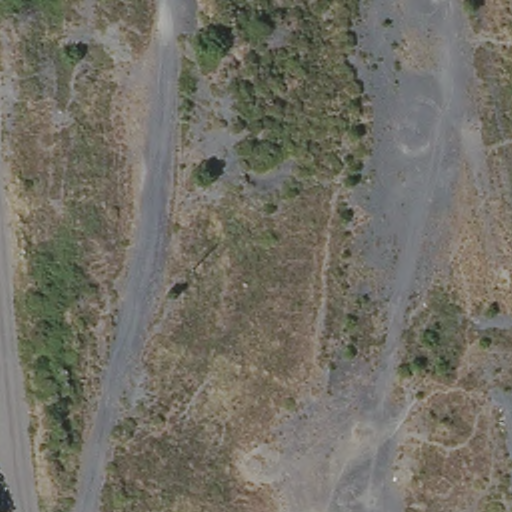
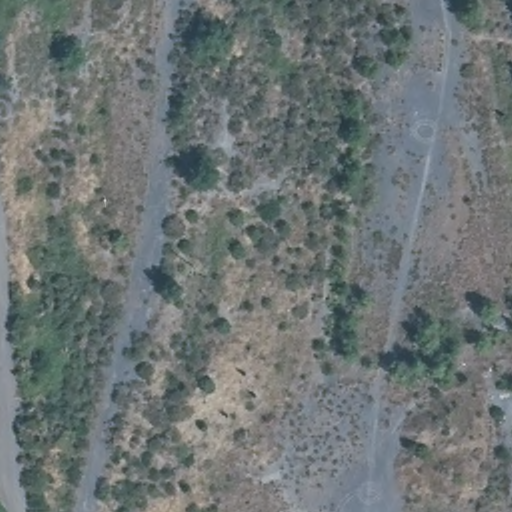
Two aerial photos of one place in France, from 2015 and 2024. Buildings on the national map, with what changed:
[]

